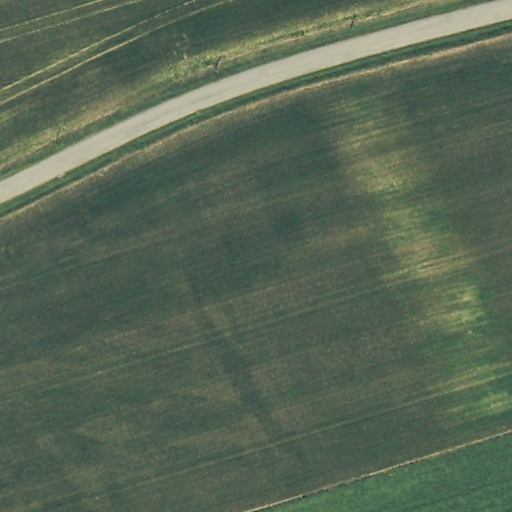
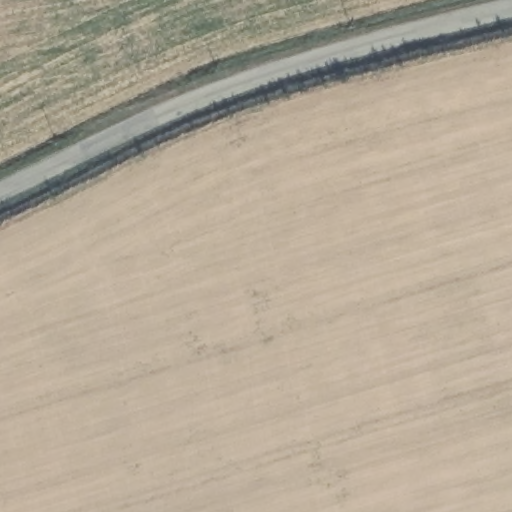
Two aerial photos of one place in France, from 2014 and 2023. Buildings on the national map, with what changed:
[]

